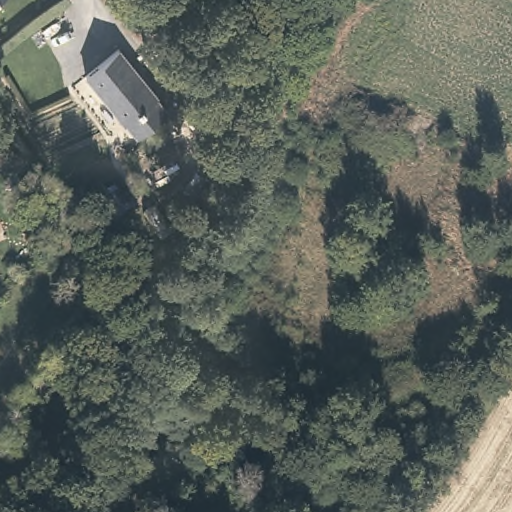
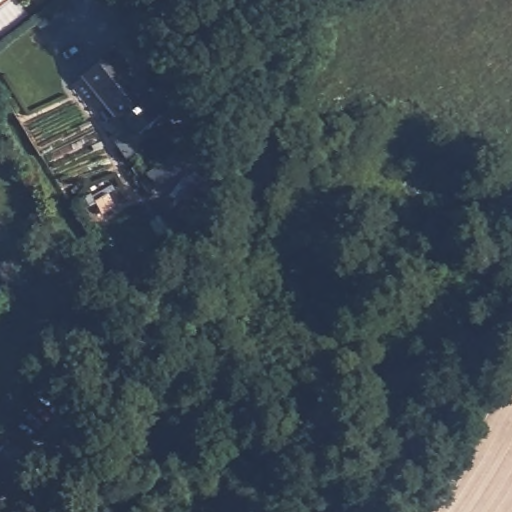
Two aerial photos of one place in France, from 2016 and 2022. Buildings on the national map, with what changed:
unchanged [(156,101),(154,102),(165,115),(135,139),(125,126),(123,127),(86,78),(118,53),(156,101)]

